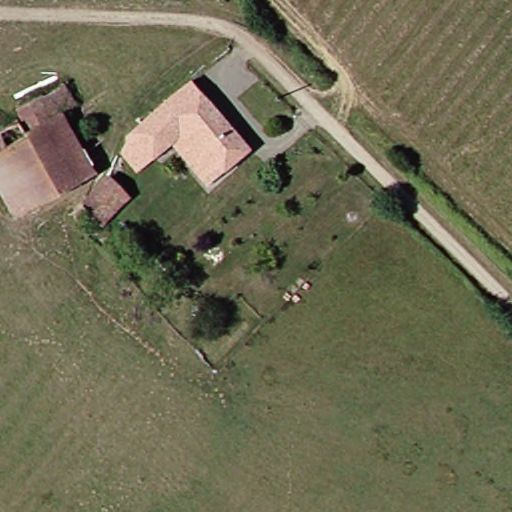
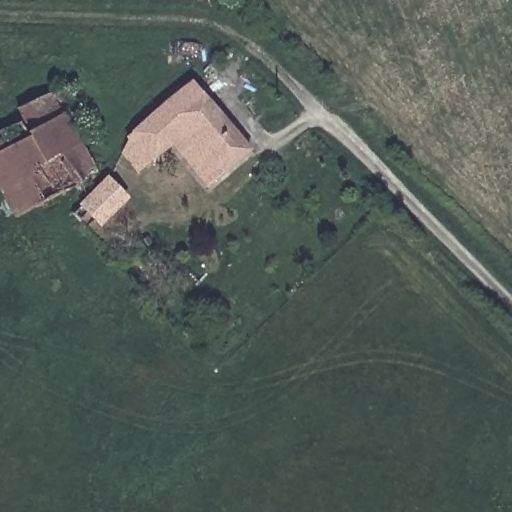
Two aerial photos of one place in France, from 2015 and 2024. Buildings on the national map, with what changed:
unchanged [(17,108),(62,84),(82,126),(67,133),(86,171),(12,219),(0,196),(0,137),(15,128),(24,123),(17,108)]
unchanged [(182,84),(242,149),(200,189),(162,148),(130,175),(109,149),(182,84)]
unchanged [(97,235),(85,223),(67,205),(107,170),(124,188),(104,205),(116,218),(97,235)]

